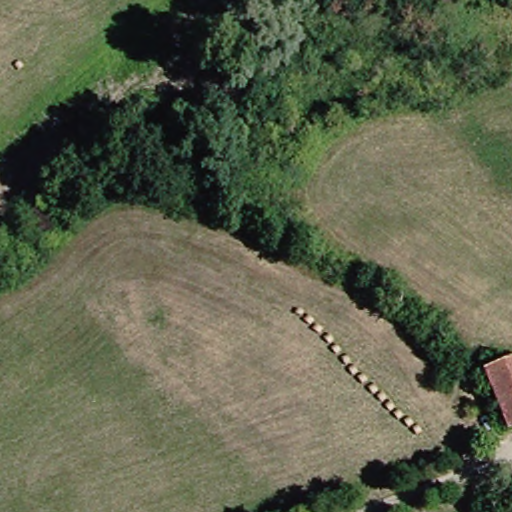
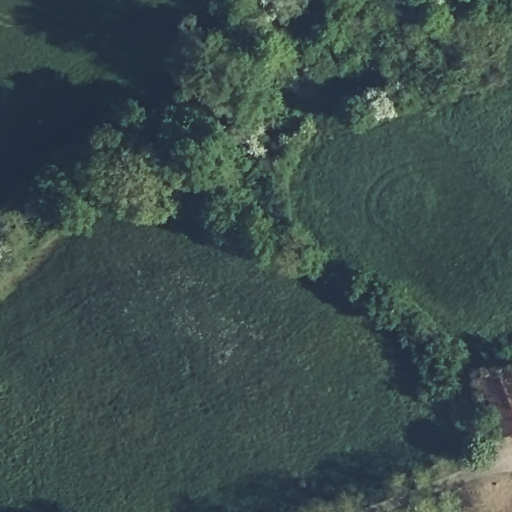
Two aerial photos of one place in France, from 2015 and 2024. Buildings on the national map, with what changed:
unchanged [(476,383),(506,372),(512,387),(512,433),(497,438),(476,383)]

